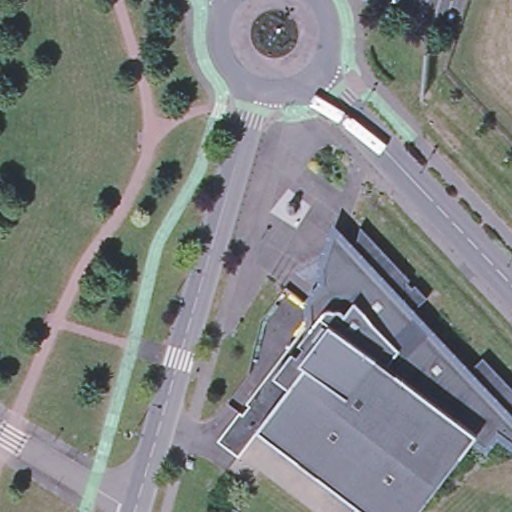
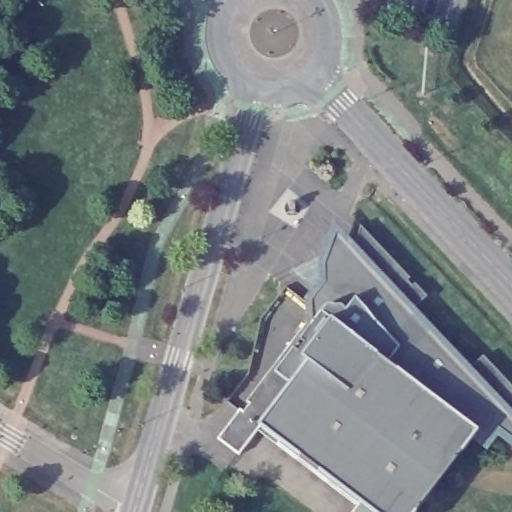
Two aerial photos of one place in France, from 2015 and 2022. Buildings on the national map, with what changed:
unchanged [(403,277),(408,282),(411,279),(423,292),(405,309),(461,367),(479,352),(512,386),(512,390),(512,391),(512,419),(511,421),(506,415),(495,425),(492,422),(481,437),(472,429),(408,512),(346,512),(356,499),(256,423),(234,451),(213,434),(236,406),(240,409),(246,400),(242,397),(311,307),(305,302),(315,287),(333,281),(335,283),(359,261),(349,250),(356,222),(406,275),(403,277)]

